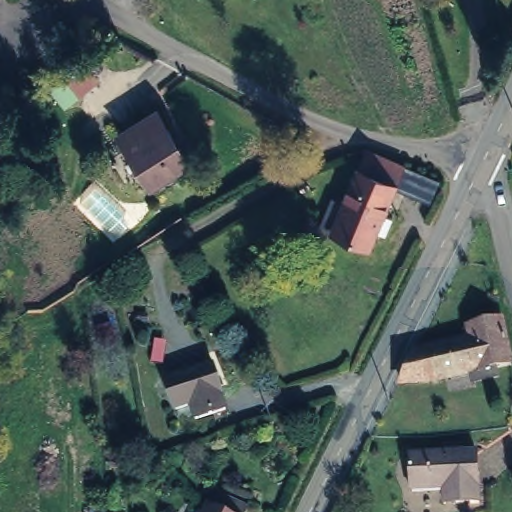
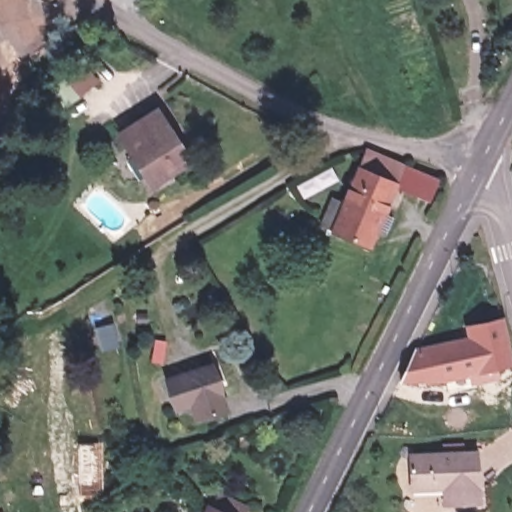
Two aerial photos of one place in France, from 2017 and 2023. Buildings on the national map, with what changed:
unchanged [(111,131),(150,106),(177,152),(137,174),(111,131)]
unchanged [(402,164),(366,242),(330,229),(366,150),(402,164)]
unchanged [(496,318),(500,332),(512,331),(512,360),(507,360),(508,363),(491,367),(492,378),(470,383),(468,372),(430,378),(393,379),(409,348),(467,336),(465,324),(496,318)]
unchanged [(210,356),(226,400),(195,411),(190,397),(175,402),(165,372),(210,356)]
unchanged [(472,450),(475,500),(451,502),(449,484),(407,488),(405,454),(472,450)]
unchanged [(207,507),(212,510),(220,495),(247,507),(245,512),(205,512),(207,507)]

